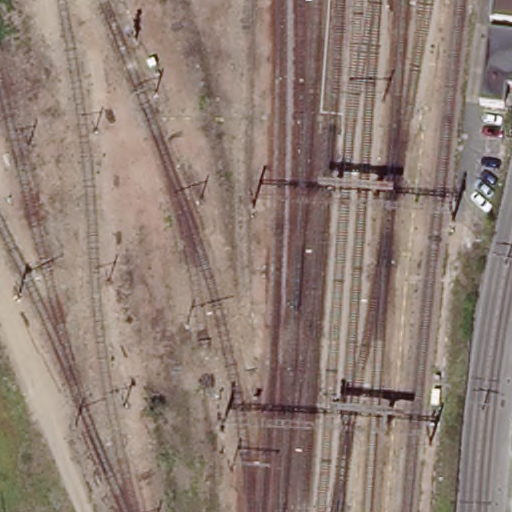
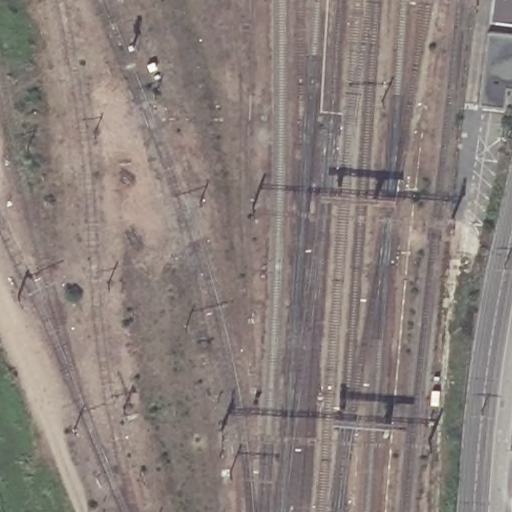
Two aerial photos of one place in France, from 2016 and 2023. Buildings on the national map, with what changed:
unchanged [(505,84),(505,104),(483,101),(491,10),(492,0),(512,0),(512,84),(505,84)]

